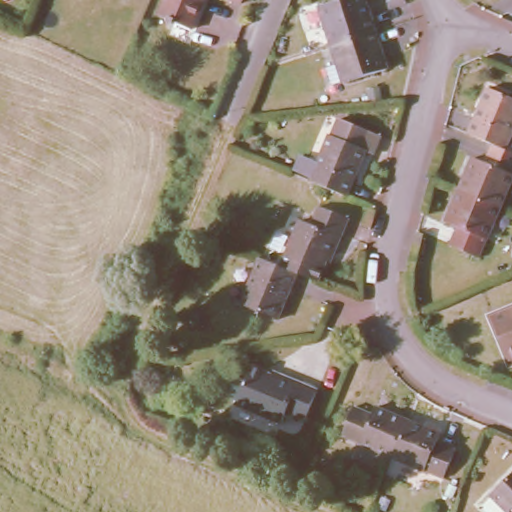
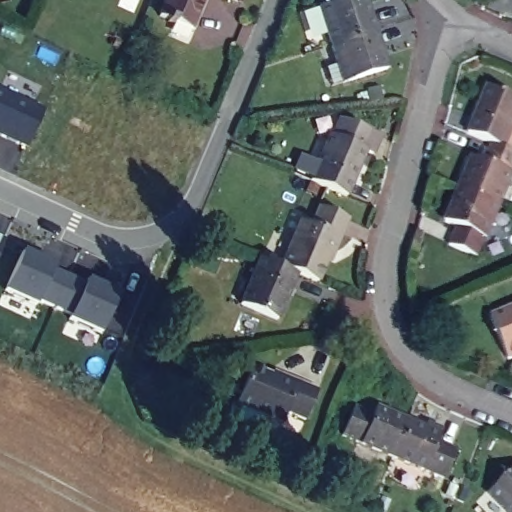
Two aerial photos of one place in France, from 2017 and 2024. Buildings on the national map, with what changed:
unchanged [(165,0),(202,0),(192,25),(160,11),(165,0)]
unchanged [(318,2),(326,0),(365,0),(374,26),(330,40),(318,2)]
unchanged [(386,65),(342,79),(330,40),(374,26),(386,65)]
unchanged [(512,94),(512,125),(503,145),(490,140),(467,130),(487,84),(512,94)]
new [(0,137),(0,89),(43,109),(25,149),(0,137)]
unchanged [(328,130),(365,146),(345,192),(309,177),(328,130)]
unchanged [(458,185),(472,154),(482,158),(490,140),(503,145),(512,149),(512,171),(499,202),(458,185)]
unchanged [(477,254),(448,241),(455,222),(445,218),(458,185),(499,202),(477,254)]
unchanged [(325,262),(317,283),(296,274),(280,267),(299,220),(310,225),(317,207),(347,219),(339,239),(328,264),(325,262)]
new [(2,241),(0,246),(0,240),(2,241)]
new [(52,270),(85,285),(87,280),(117,295),(100,335),(67,320),(68,317),(36,302),(35,305),(5,291),(23,250),(56,266),(52,270)]
unchanged [(277,320),(240,305),(259,258),(280,267),(296,274),(277,320)]
unchanged [(490,313),(512,304),(512,354),(507,355),(490,313)]
unchanged [(303,415),(285,408),(281,418),(235,400),(250,362),(270,370),(272,367),(297,377),(316,386),(303,415)]
unchanged [(342,431),(353,402),(372,410),(375,403),(407,416),(392,452),(342,431)]
unchanged [(440,429),(437,436),(455,444),(442,473),(392,452),(407,416),(440,429)]
unchanged [(512,464),(512,512),(507,512),(485,490),(512,464)]

